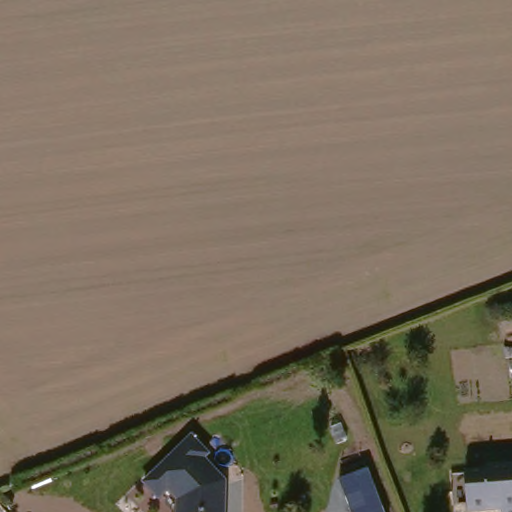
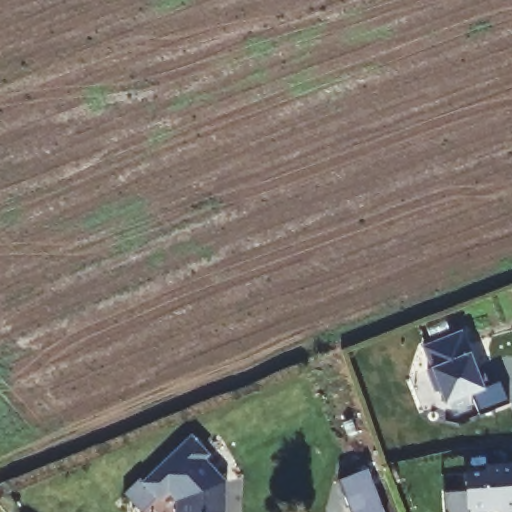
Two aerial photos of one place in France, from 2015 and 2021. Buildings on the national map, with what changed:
new [(470,353),(483,388),(500,382),(510,405),(480,416),(473,394),(445,403),(440,390),(436,393),(428,372),(433,369),(424,347),(462,332),(470,353)]
unchanged [(167,491),(158,501),(143,486),(188,438),(205,454),(201,459),(224,480),(224,512),(177,512),(177,501),(167,491)]
unchanged [(512,467),(512,512),(499,512),(499,509),(466,510),(464,474),(485,473),(485,469),(512,467)]
unchanged [(376,512),(346,512),(336,480),(363,471),(376,512)]

